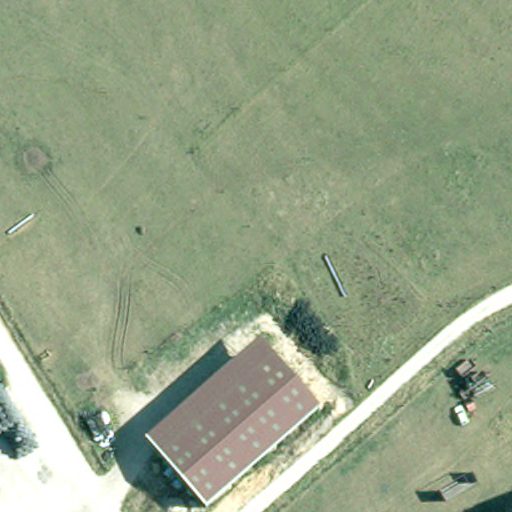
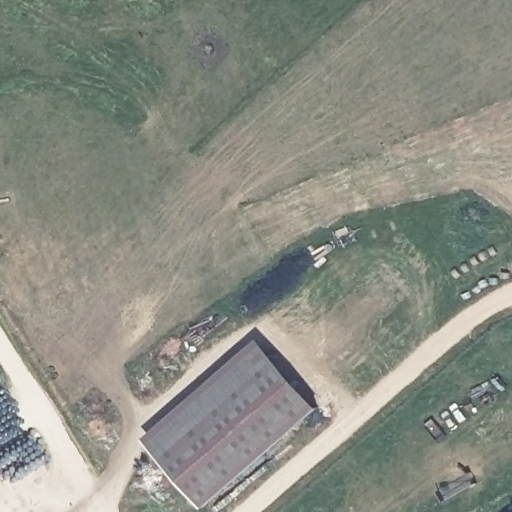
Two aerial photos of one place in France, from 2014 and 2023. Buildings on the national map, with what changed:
unchanged [(147,439),(261,340),(274,356),(161,454),(147,439)]
unchanged [(274,356),(320,408),(206,507),(161,454),(274,356)]

